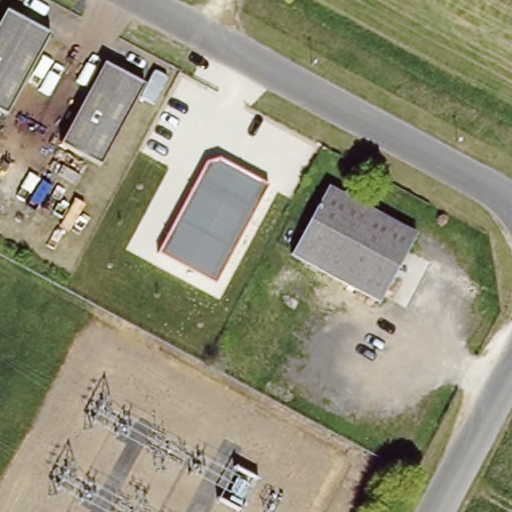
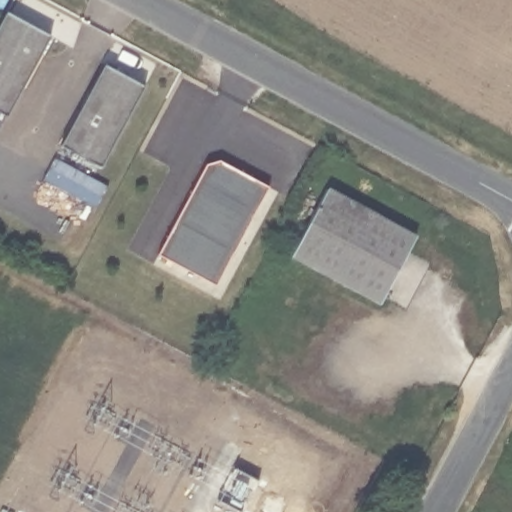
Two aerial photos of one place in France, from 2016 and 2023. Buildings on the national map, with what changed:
unchanged [(49,35),(5,118),(0,116),(0,21),(5,11),(49,35)]
unchanged [(143,83),(100,165),(60,143),(103,62),(143,83)]
unchanged [(208,159),(216,163),(219,158),(269,185),(214,283),(159,254),(208,159)]
unchanged [(416,239),(382,304),(293,256),(326,191),(416,239)]

